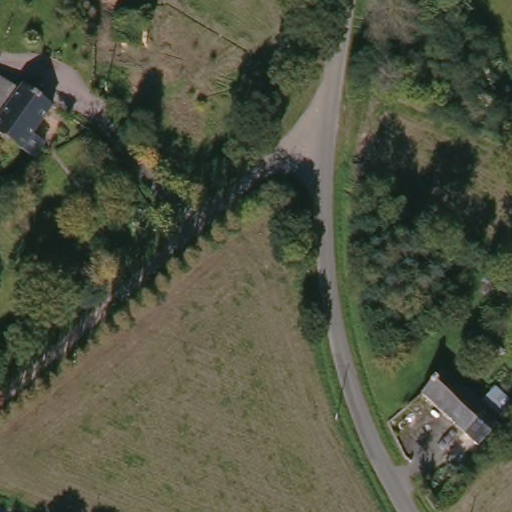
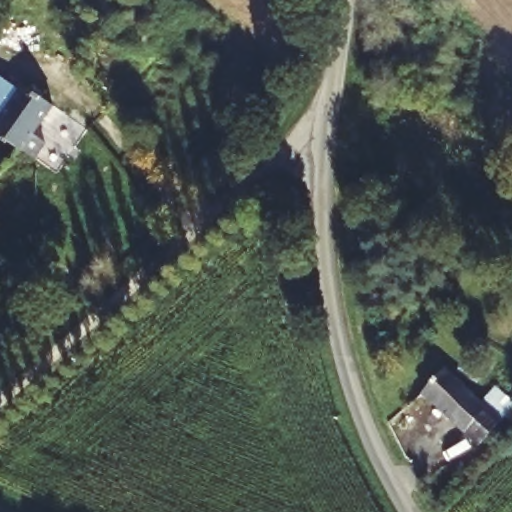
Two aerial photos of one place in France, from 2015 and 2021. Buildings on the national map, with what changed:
unchanged [(15,96),(17,90),(56,107),(37,137),(49,145),(40,160),(19,151),(0,142),(0,89),(15,96)]
unchanged [(475,446),(417,395),(439,370),(479,405),(492,390),(510,405),(475,446)]

